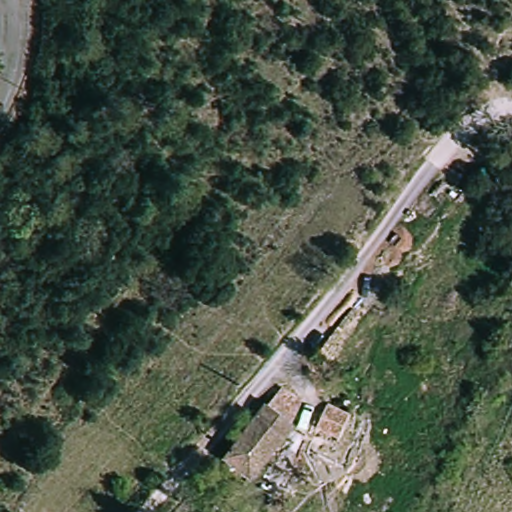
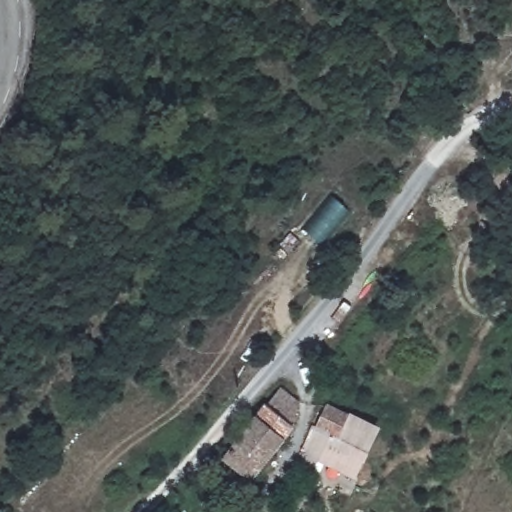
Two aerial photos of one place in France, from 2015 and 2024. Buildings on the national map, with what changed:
unchanged [(246,480),(223,461),(264,405),(275,393),(295,410),(285,421),(289,424),(246,480)]
new [(350,414),(351,412),(382,427),(357,480),(325,465),(317,481),(310,477),(313,470),(300,455),(313,425),(315,426),(323,405),(336,411),(336,410),(327,406),(328,403),(350,414)]
demolished [(323,405),(336,411),(345,415),(335,436),(315,426),(323,405)]

